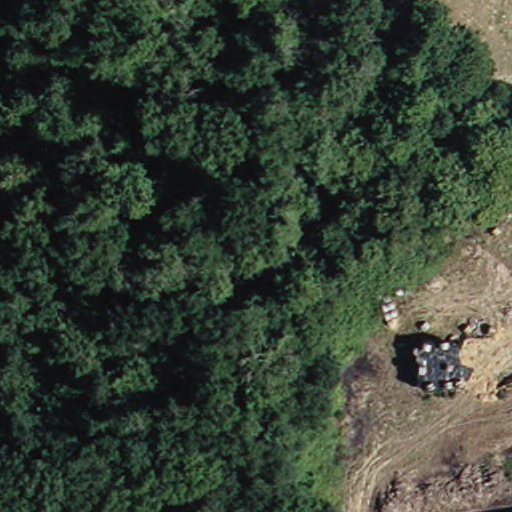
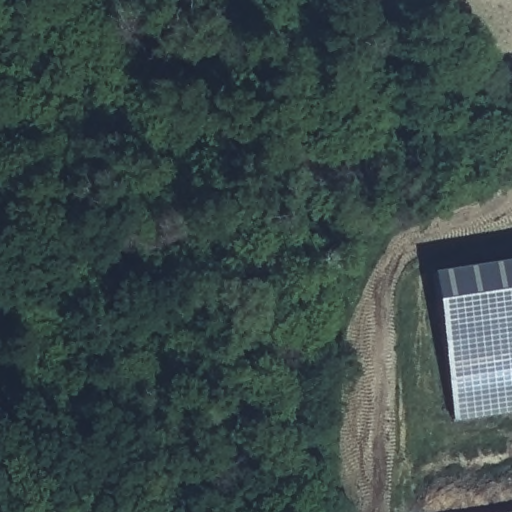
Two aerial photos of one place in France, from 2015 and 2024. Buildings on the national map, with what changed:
new [(444,270),(512,261),(512,411),(461,419),(444,270)]

